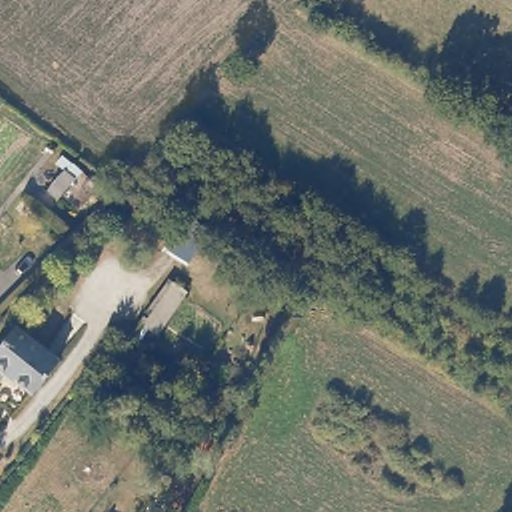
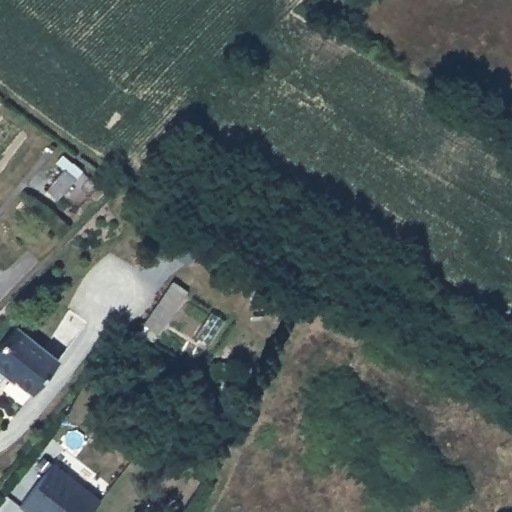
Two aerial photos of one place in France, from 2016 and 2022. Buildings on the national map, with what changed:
unchanged [(85,169),(60,200),(47,188),(63,168),(56,163),(64,153),(85,169)]
unchanged [(190,292),(161,336),(140,323),(171,278),(190,292)]
unchanged [(57,359),(31,393),(5,372),(3,375),(0,372),(0,345),(15,326),(57,359)]
new [(102,498),(92,512),(27,512),(20,507),(54,462),(102,498)]

